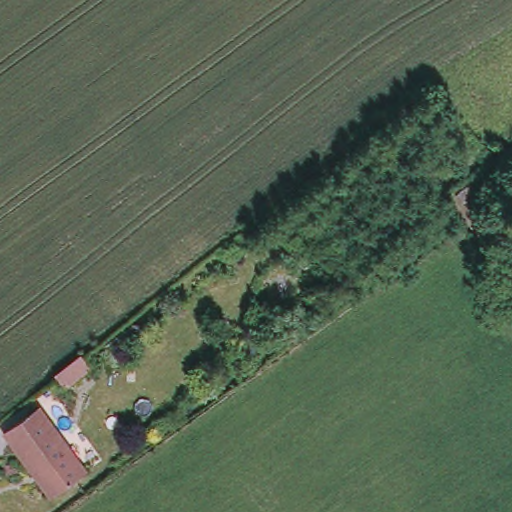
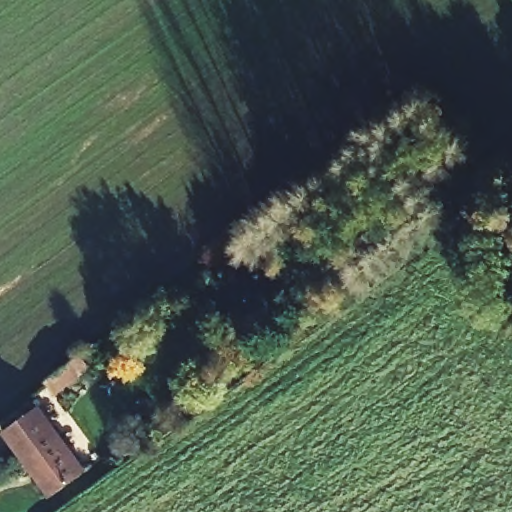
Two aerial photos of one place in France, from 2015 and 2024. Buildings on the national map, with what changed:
unchanged [(69,379),(47,399),(35,386),(60,367),(69,379)]
unchanged [(4,436),(38,408),(86,469),(51,496),(4,436)]

